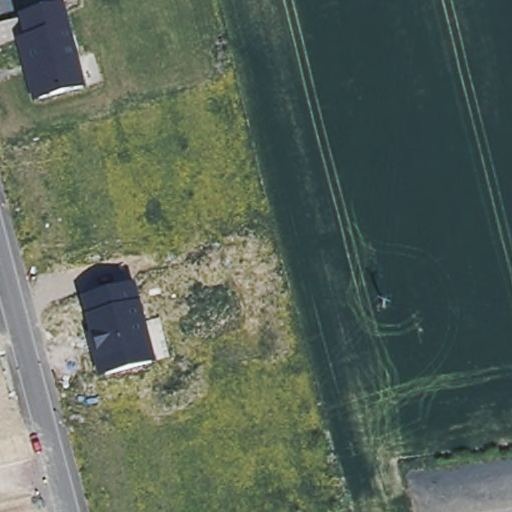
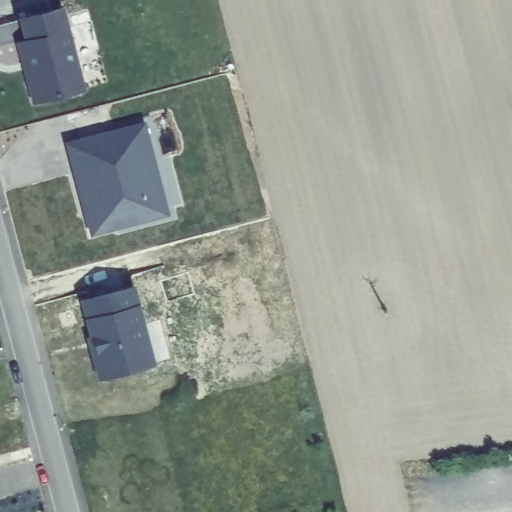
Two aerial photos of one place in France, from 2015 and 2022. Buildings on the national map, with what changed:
unchanged [(66,7),(85,92),(32,105),(17,42),(25,40),(20,19),(66,7)]
new [(171,215),(90,237),(65,142),(146,120),(171,215)]
unchanged [(103,376),(81,295),(135,281),(155,361),(103,376)]

